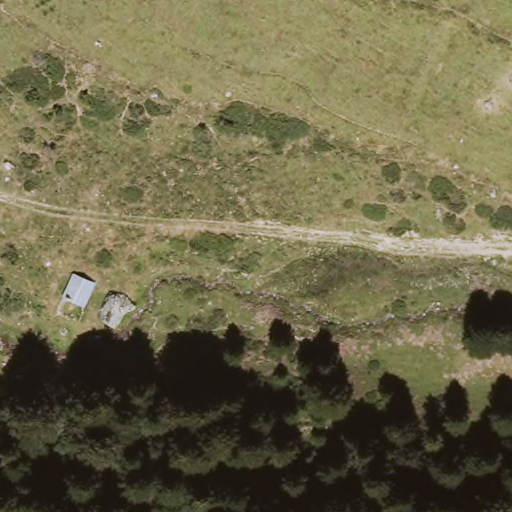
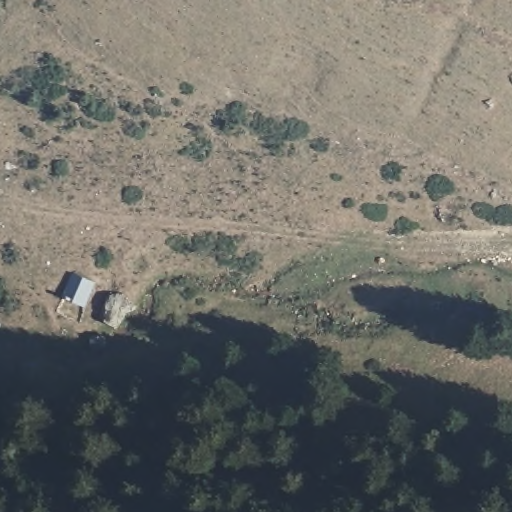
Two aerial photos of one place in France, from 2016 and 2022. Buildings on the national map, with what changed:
unchanged [(87,293),(84,300),(62,291),(72,269),(94,278),(87,293)]

